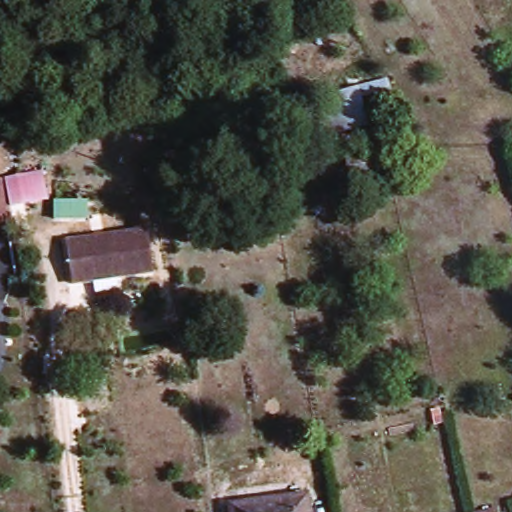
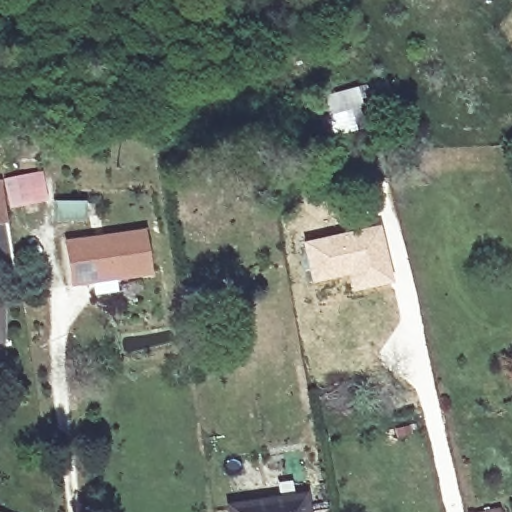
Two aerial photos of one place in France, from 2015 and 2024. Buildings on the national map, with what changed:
unchanged [(342,94),(399,81),(403,90),(373,100),(375,125),(347,134),(342,94)]
unchanged [(0,221),(0,185),(20,183),(24,218),(0,221)]
new [(380,224),(394,282),(352,291),(348,275),(312,282),(303,241),(380,224)]
unchanged [(164,272),(131,276),(133,287),(106,291),(105,279),(84,282),(79,239),(158,229),(164,272)]
unchanged [(0,334),(0,310),(1,334),(0,334)]
unchanged [(239,512),(239,510),(313,498),(316,512),(239,512)]

